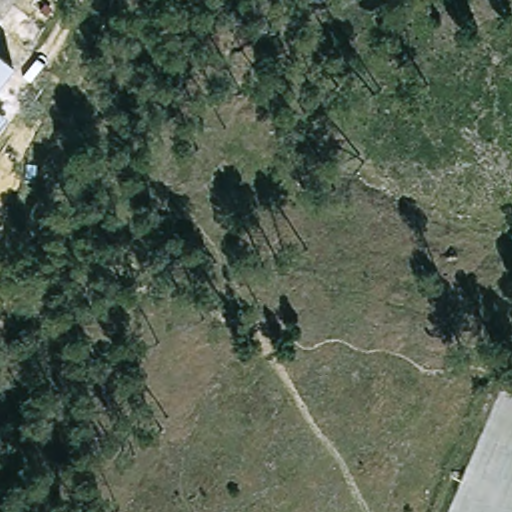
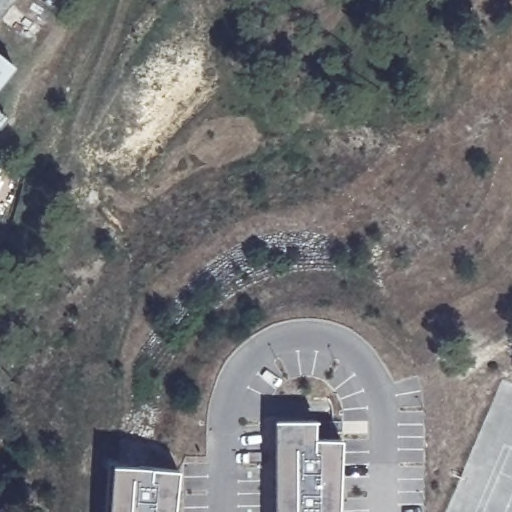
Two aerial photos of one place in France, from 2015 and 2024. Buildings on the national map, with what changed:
unchanged [(0,87),(0,49),(18,65),(0,87)]
new [(312,438),(340,438),(337,512),(272,512),(272,419),(313,419),(312,438)]
new [(173,512),(106,512),(109,463),(177,468),(173,512)]

